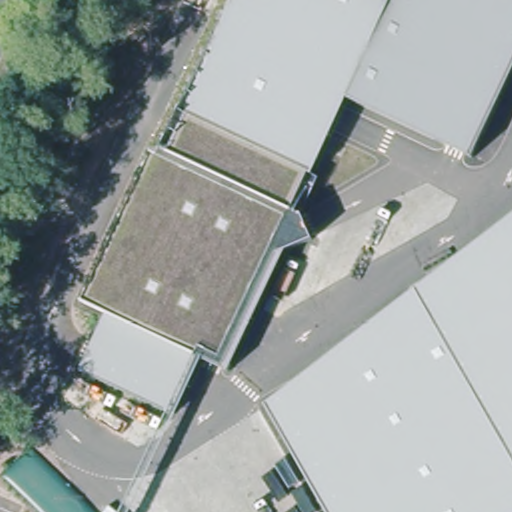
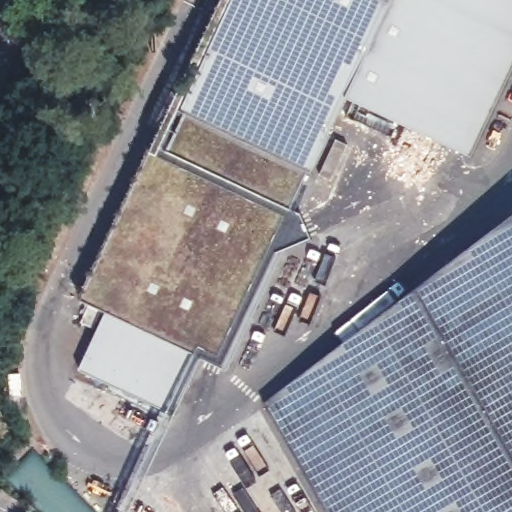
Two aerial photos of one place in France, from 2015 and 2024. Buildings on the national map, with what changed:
unchanged [(350,102),(299,197),(313,241),(287,253),(229,372),(197,356),(169,413),(78,371),(106,310),(79,300),(173,107),(183,111),(234,0),(512,0),(512,76),(474,159),(350,102)]
unchanged [(263,403),(512,218),(512,512),(327,512),(263,403)]

